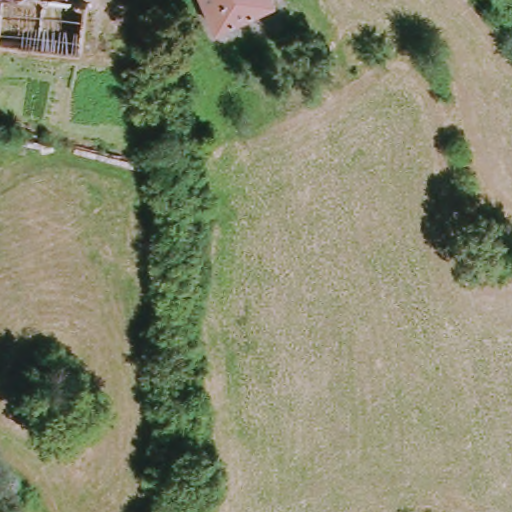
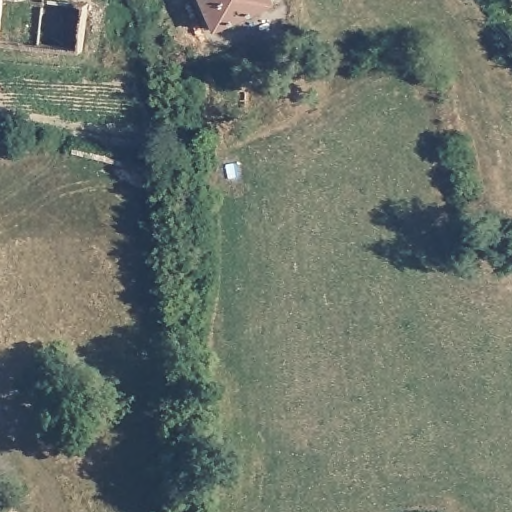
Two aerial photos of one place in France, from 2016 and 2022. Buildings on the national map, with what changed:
unchanged [(283,0),(222,26),(211,0),(283,0)]

